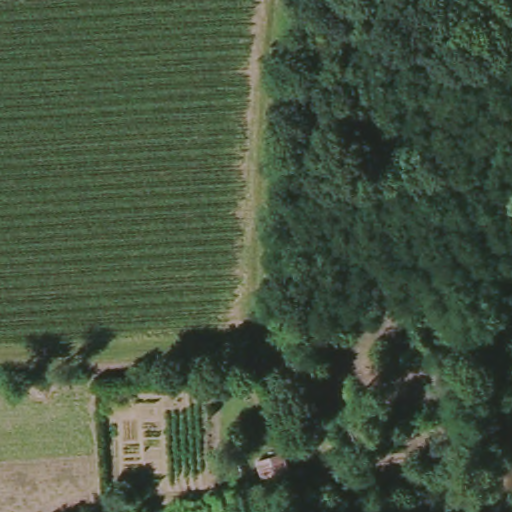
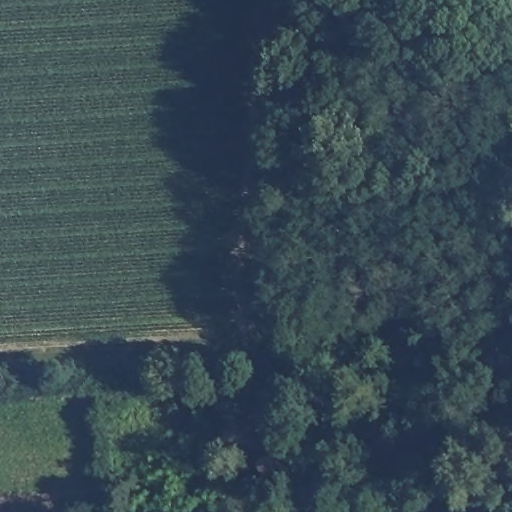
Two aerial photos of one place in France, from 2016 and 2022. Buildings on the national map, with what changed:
unchanged [(255,487),(245,462),(281,445),(291,469),(255,487)]

